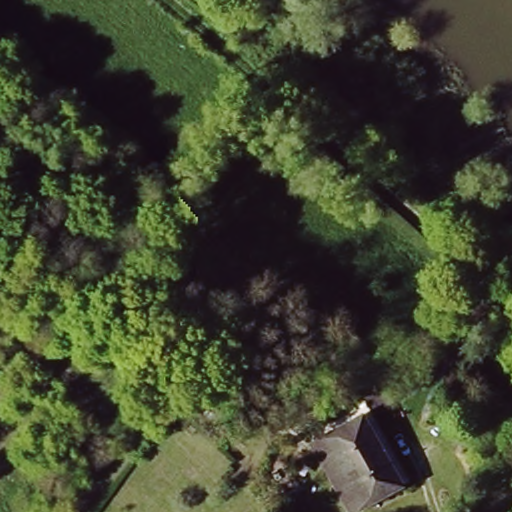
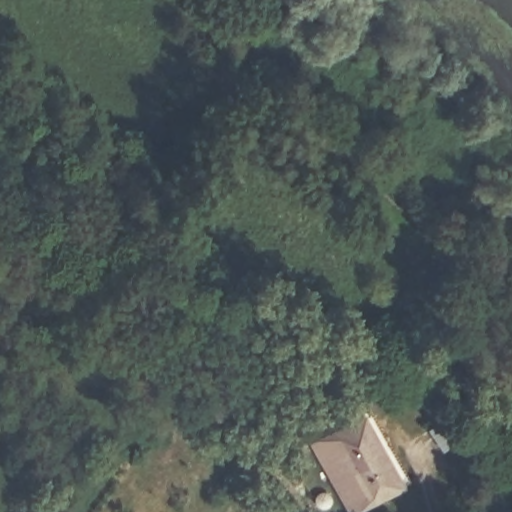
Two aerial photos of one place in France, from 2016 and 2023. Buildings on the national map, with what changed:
unchanged [(364,512),(344,512),(308,442),(365,410),(410,488),(364,512)]

